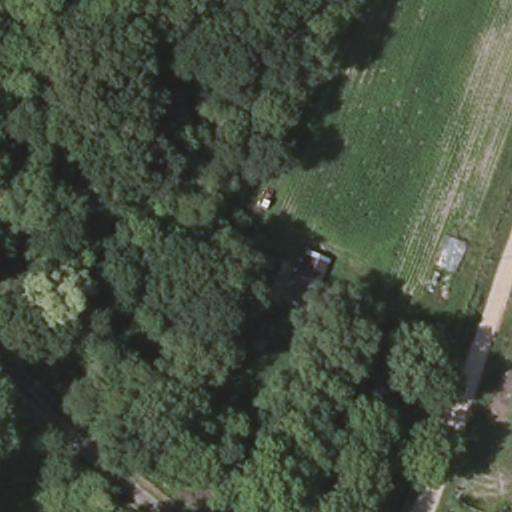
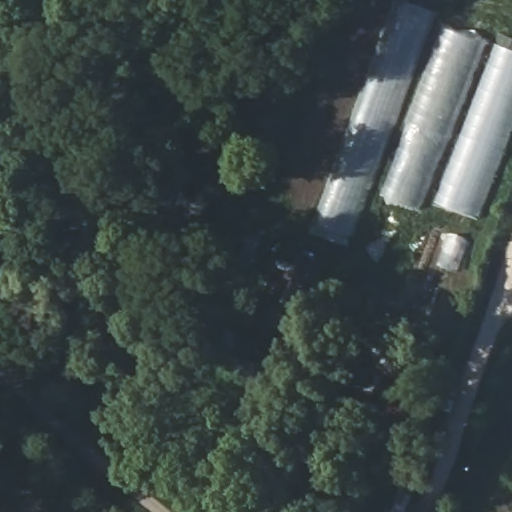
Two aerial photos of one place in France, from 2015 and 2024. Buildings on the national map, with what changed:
new [(308,230),(395,0),(406,0),(436,11),(348,246),(308,230)]
new [(420,210),(380,195),(443,25),(483,40),(420,210)]
new [(435,202),(496,42),(512,48),(512,133),(479,219),(435,202)]

